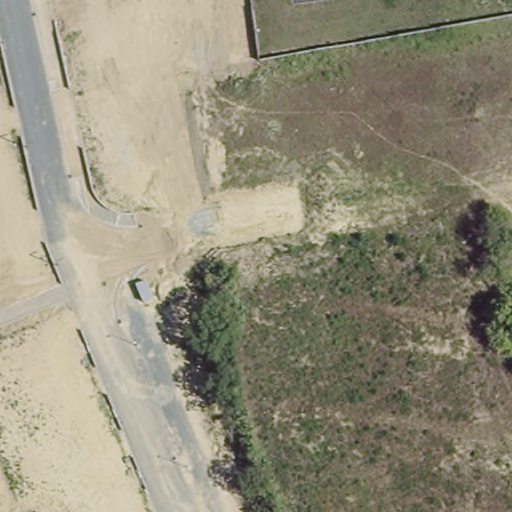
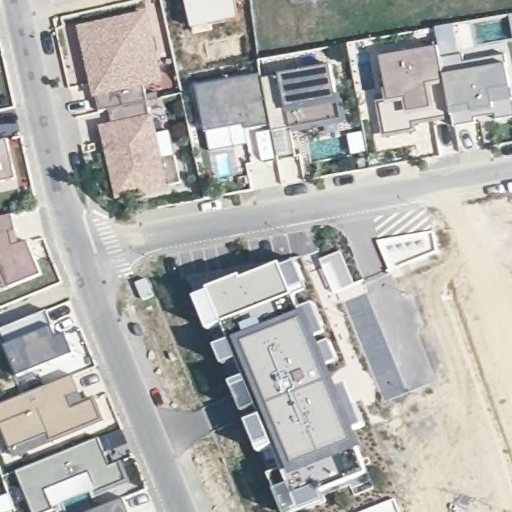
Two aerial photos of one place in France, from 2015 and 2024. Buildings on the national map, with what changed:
new [(239,19),(192,30),(186,0),(236,0),(239,19)]
new [(165,83),(145,87),(147,102),(110,110),(100,111),(97,97),(93,99),(78,27),(149,11),(165,83)]
new [(437,30),(458,27),(461,45),(440,48),(437,30)]
new [(455,128),(453,117),(413,125),(415,132),(387,137),(382,107),(392,105),(386,73),(384,61),(441,50),(443,63),(463,59),(465,66),(506,58),(512,92),(512,118),(497,121),(496,116),(476,120),(477,124),(455,128)]
new [(347,124),(293,134),(292,129),(273,132),(271,125),(264,82),(333,70),(340,106),(344,105),(347,124)]
new [(209,144),(207,133),(206,134),(197,87),(262,75),(271,125),(246,131),(247,136),(209,144)]
new [(114,127),(110,110),(147,102),(160,159),(175,156),(181,183),(119,197),(104,129),(114,127)]
new [(0,141),(8,140),(17,177),(4,180),(3,176),(0,177),(0,139),(0,141)]
new [(5,288),(0,277),(0,219),(13,216),(22,245),(28,243),(41,274),(5,288)]
new [(285,510),(188,278),(250,267),(253,278),(282,266),(325,367),(367,473),(285,510)]
new [(145,280),(153,296),(143,300),(136,283),(145,280)]
new [(47,311),(58,338),(67,335),(75,355),(19,378),(0,332),(0,331),(47,311)]
new [(10,448),(0,424),(0,407),(73,376),(80,393),(85,404),(94,400),(102,421),(48,443),(14,457),(10,448)]
new [(110,452),(103,455),(107,466),(124,460),(132,480),(105,492),(97,472),(53,490),(61,510),(55,512),(40,512),(23,470),(104,437),(110,452)]
new [(129,512),(92,512),(124,499),(129,512)]

